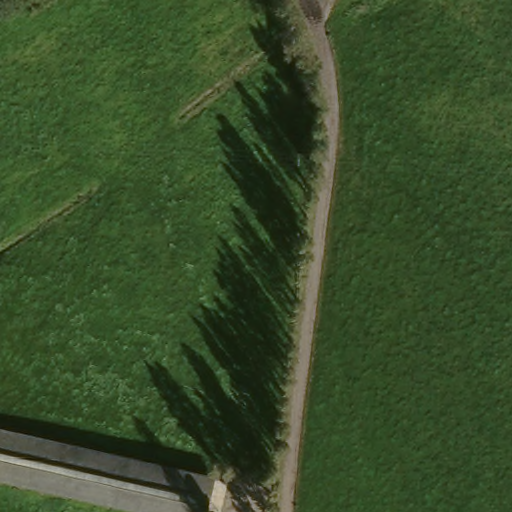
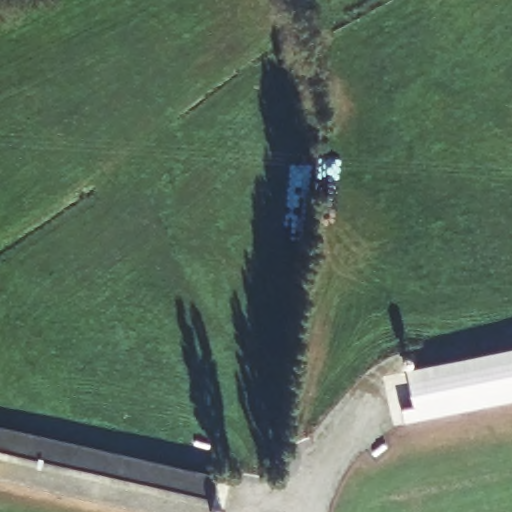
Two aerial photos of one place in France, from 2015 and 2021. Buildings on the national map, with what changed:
new [(406,373),(512,352),(512,400),(403,421),(401,408),(413,407),(406,373)]
unchanged [(223,476),(215,512),(162,512),(0,477),(0,430),(1,427),(223,476)]

